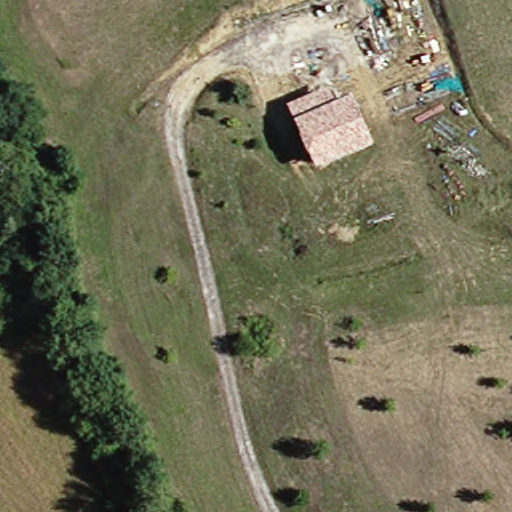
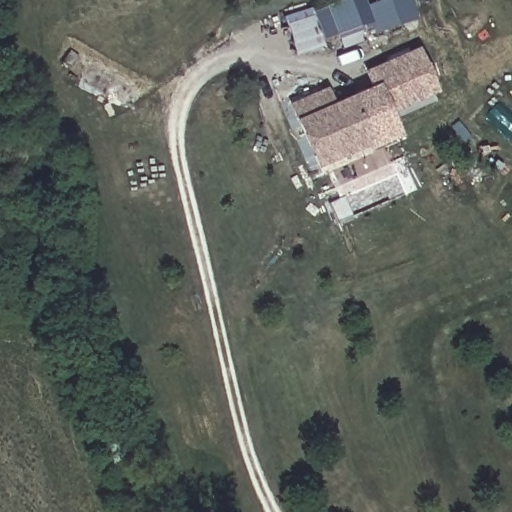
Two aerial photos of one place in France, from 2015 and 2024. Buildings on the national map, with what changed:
new [(313,12),(347,0),(370,0),(371,4),(383,0),(410,0),(417,20),(377,34),(373,23),(324,41),(313,12)]
new [(392,114),(401,134),(373,146),(354,95),(370,89),(362,72),(418,47),(438,94),(392,114)]
unchanged [(325,88),(331,104),(354,95),(373,146),(315,172),(287,104),(325,88)]

